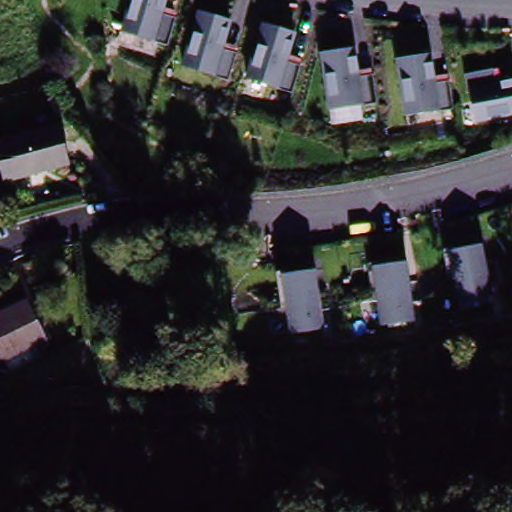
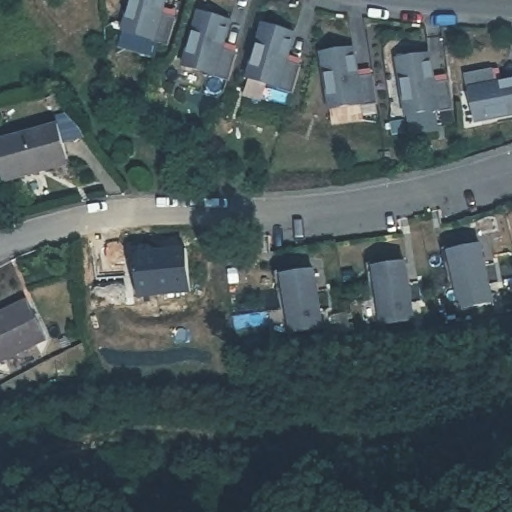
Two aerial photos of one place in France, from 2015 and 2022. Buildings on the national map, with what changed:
unchanged [(164,10),(175,12),(167,45),(121,30),(129,0),(166,0),(164,10)]
unchanged [(231,20),(224,43),(236,46),(227,77),(180,64),(195,11),(231,20)]
unchanged [(296,32),(289,57),(300,60),(291,91),(247,77),(261,24),(296,32)]
unchanged [(355,48),(359,71),(370,70),(375,103),(327,111),(319,53),(355,48)]
unchanged [(431,54),(435,77),(447,76),(450,107),(404,116),(394,59),(431,54)]
unchanged [(500,81),(512,79),(512,115),(474,122),(465,76),(499,70),(500,81)]
unchanged [(38,176),(0,180),(0,137),(67,130),(72,165),(73,172),(38,176)]
unchanged [(478,243),(493,300),(459,308),(446,250),(478,243)]
new [(189,292),(136,296),(132,258),(137,252),(185,247),(189,292)]
unchanged [(404,261),(415,317),(380,322),(370,265),(404,261)]
unchanged [(314,271),(324,328),(287,332),(279,275),(314,271)]
unchanged [(32,303),(45,346),(0,360),(0,312),(32,303)]

